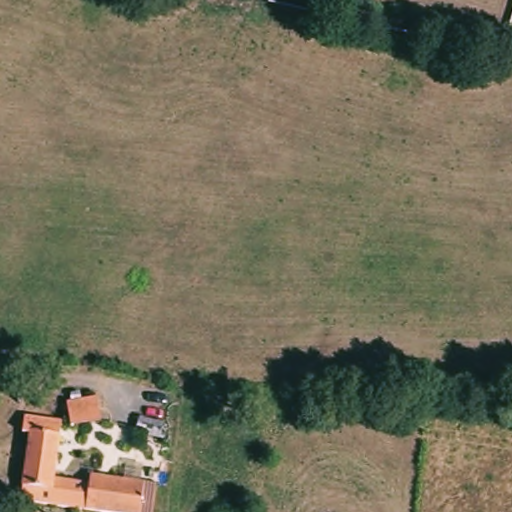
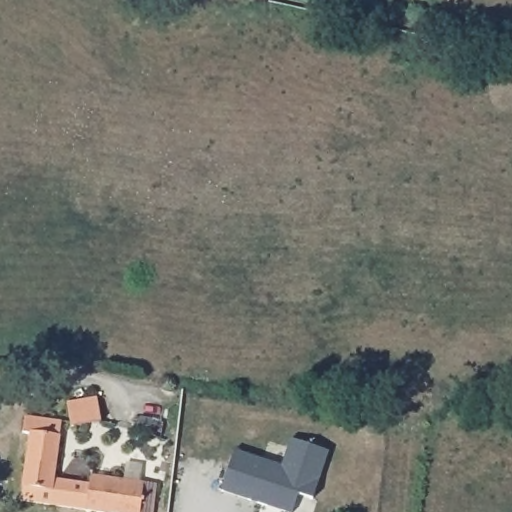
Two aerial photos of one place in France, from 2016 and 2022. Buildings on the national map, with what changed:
unchanged [(512,42),(512,55),(503,53),(506,40),(512,42)]
unchanged [(99,400),(98,421),(69,421),(70,399),(99,400)]
unchanged [(24,433),(26,416),(61,422),(54,479),(51,507),(20,502),(30,434),(24,433)]
new [(234,451),(282,466),(291,439),(330,452),(313,500),(298,495),(292,512),(284,512),(221,490),(234,451)]
unchanged [(54,479),(92,485),(93,477),(144,484),(158,486),(154,512),(92,512),(88,512),(51,507),(54,479)]

